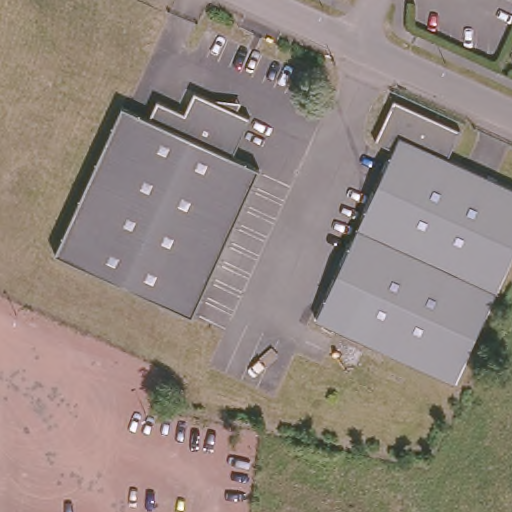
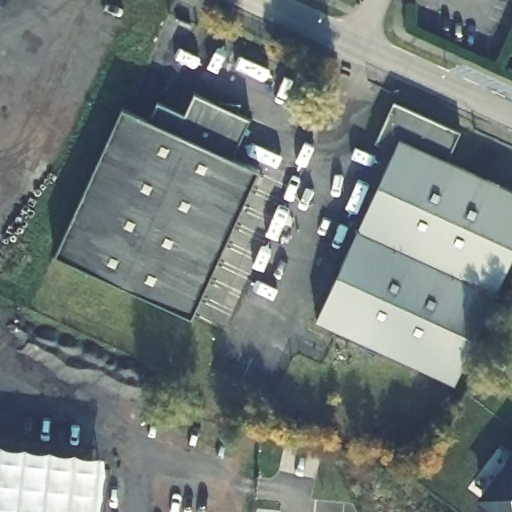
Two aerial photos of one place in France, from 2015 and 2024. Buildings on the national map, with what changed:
unchanged [(60,252),(128,105),(155,117),(163,99),(190,111),(200,90),(257,116),(238,155),(265,168),(197,315),(60,252)]
unchanged [(376,137),(396,96),(462,127),(449,155),(512,185),(512,253),(453,378),(316,314),(395,146),(376,137)]
new [(0,512),(0,445),(105,456),(100,512),(0,512)]
new [(512,454),(512,512),(497,512),(478,497),(512,454)]

